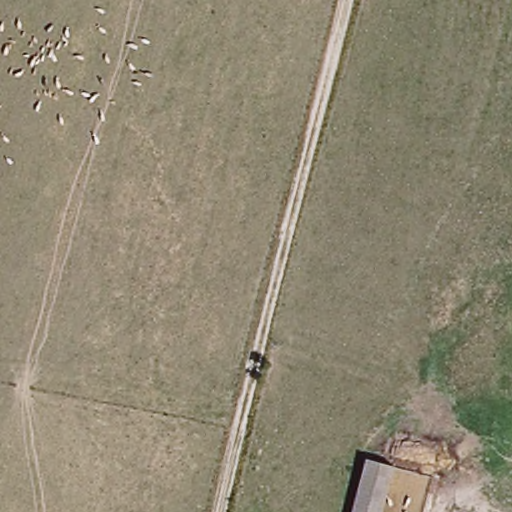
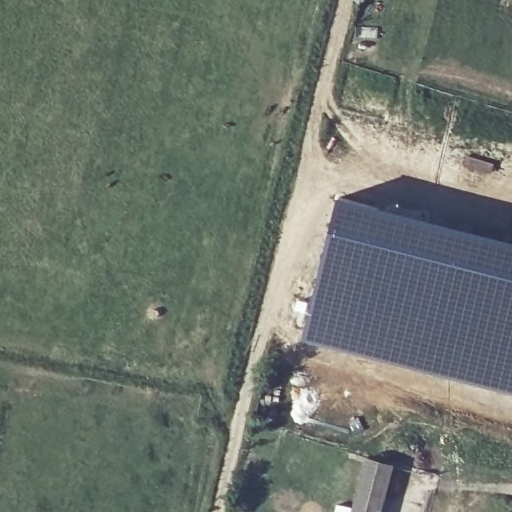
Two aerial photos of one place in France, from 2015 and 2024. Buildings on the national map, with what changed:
new [(512,238),(512,393),(300,340),(338,194),(512,238)]
unchanged [(395,464),(380,512),(352,512),(370,456),(395,464)]

